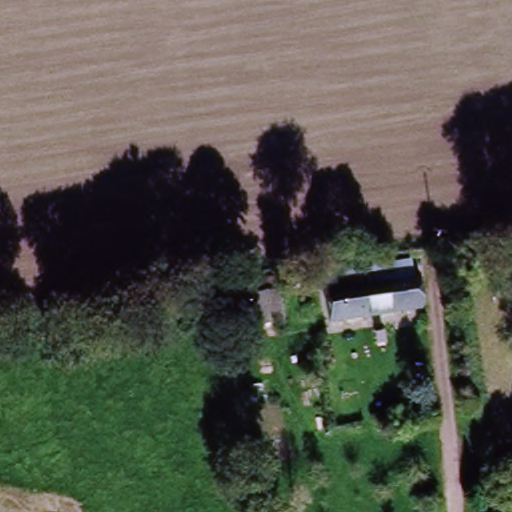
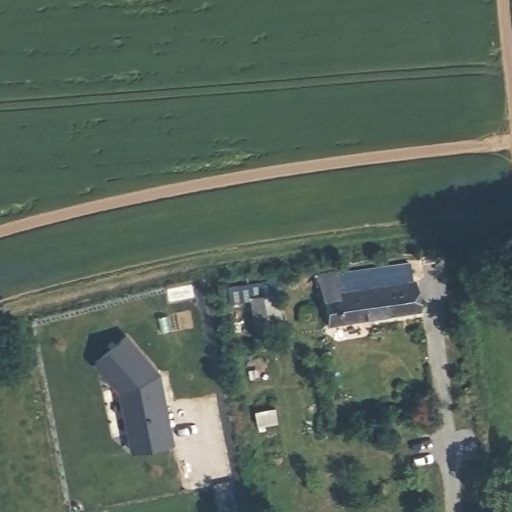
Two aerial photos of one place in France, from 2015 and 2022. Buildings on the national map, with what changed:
unchanged [(348,290),(345,271),(412,262),(415,283),(348,290)]
unchanged [(492,302),(487,275),(512,269),(512,298),(492,302)]
unchanged [(419,311),(330,322),(323,273),(345,271),(348,290),(415,283),(419,311)]
unchanged [(233,281),(278,277),(282,321),(258,323),(255,294),(235,296),(233,281)]
new [(161,371),(175,445),(132,453),(120,392),(93,361),(128,333),(161,371)]

